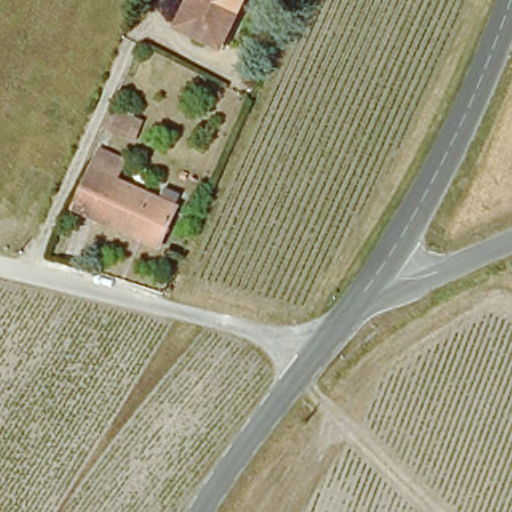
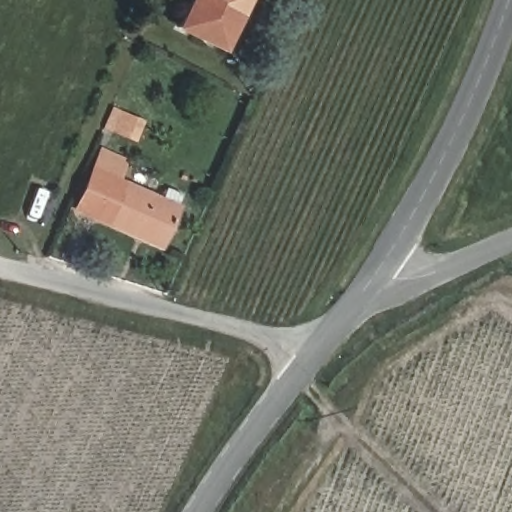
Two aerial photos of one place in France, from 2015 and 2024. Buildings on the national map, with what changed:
unchanged [(240,0),(221,47),(176,27),(188,0),(240,0)]
unchanged [(128,108),(139,113),(133,128),(121,124),(128,108)]
unchanged [(101,157),(121,167),(113,185),(160,204),(164,194),(182,202),(161,250),(76,215),(101,157)]

